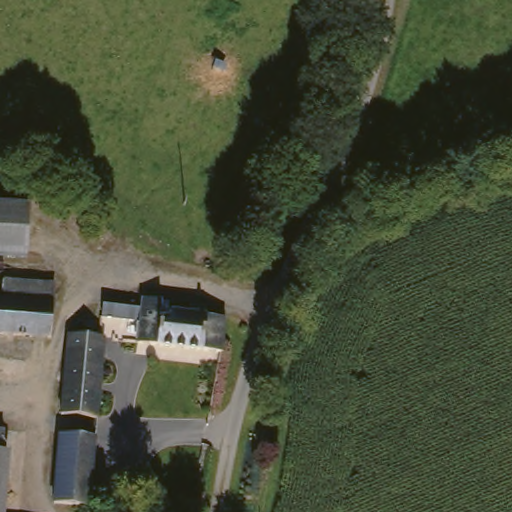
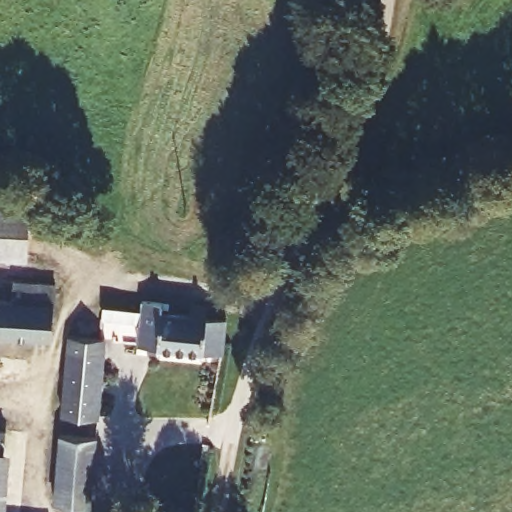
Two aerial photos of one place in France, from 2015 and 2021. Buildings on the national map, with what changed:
unchanged [(28,254),(0,252),(0,200),(31,202),(28,254)]
unchanged [(61,280),(59,299),(0,296),(0,277),(61,280)]
unchanged [(57,334),(0,330),(0,296),(59,299),(57,334)]
unchanged [(143,309),(144,299),(166,301),(165,311),(192,314),(193,304),(212,306),(210,317),(230,319),(225,352),(139,342),(142,321),(104,317),(105,304),(143,309)]
unchanged [(111,333),(105,413),(69,410),(75,330),(111,333)]
unchanged [(0,458),(0,428),(11,430),(8,459),(0,458)]
unchanged [(101,433),(94,504),(56,501),(62,430),(101,433)]
unchanged [(8,459),(3,512),(0,512),(0,458),(8,459)]

